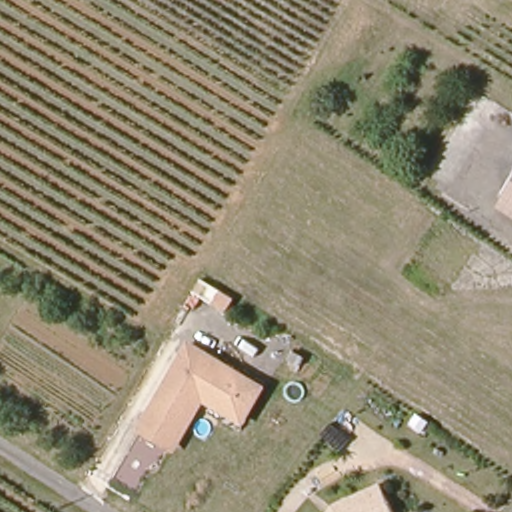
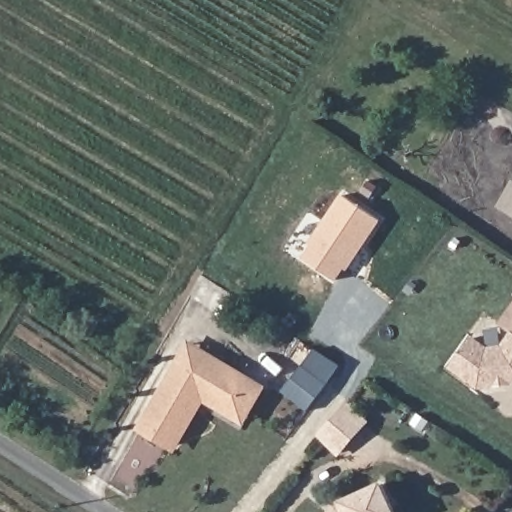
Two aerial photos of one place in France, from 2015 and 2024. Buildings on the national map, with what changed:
unchanged [(512,187),(512,212),(500,205),(512,187)]
new [(348,271),(345,268),(337,281),(303,258),(311,245),(309,243),(341,198),(342,194),(382,221),(348,271)]
new [(512,305),(512,332),(500,322),(512,305)]
new [(449,367),(472,335),(487,348),(502,345),(512,332),(512,384),(477,389),(449,367)]
unchanged [(245,427),(205,404),(175,454),(135,431),(188,340),(268,387),(245,427)]
new [(283,394),(315,352),(328,362),(342,367),(307,412),(283,394)]
new [(371,423),(341,458),(317,438),(347,403),(371,423)]
unchanged [(384,483),(396,512),(328,512),(335,503),(384,483)]

